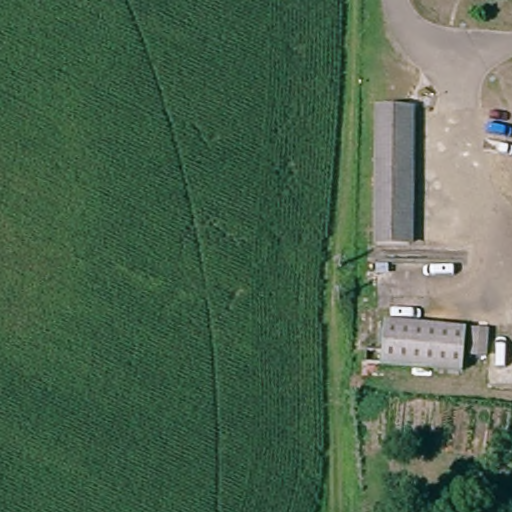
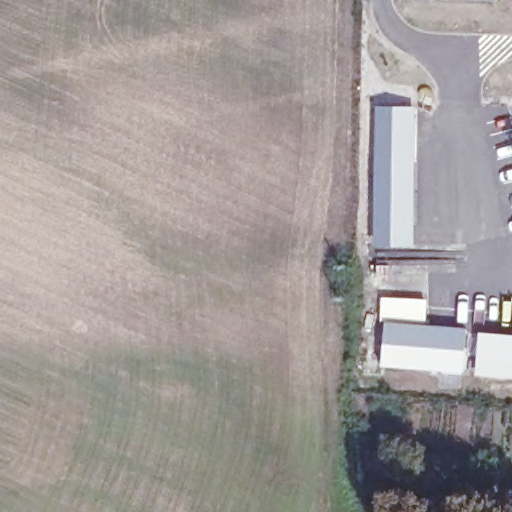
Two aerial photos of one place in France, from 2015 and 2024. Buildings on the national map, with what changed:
unchanged [(375,243),(380,108),(416,111),(413,246),(375,243)]
unchanged [(462,369),(381,362),(385,328),(466,336),(462,369)]
new [(479,332),(512,336),(512,378),(475,375),(479,332)]

